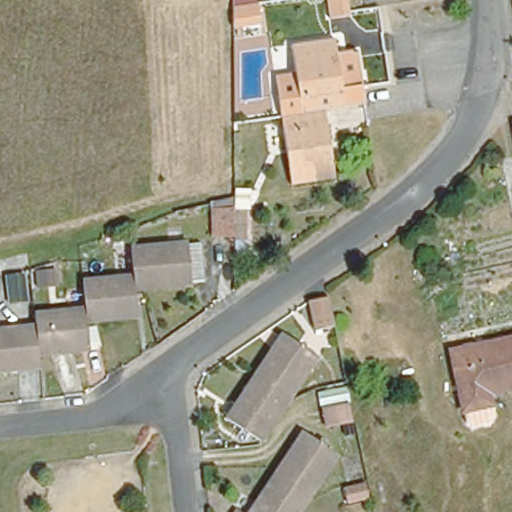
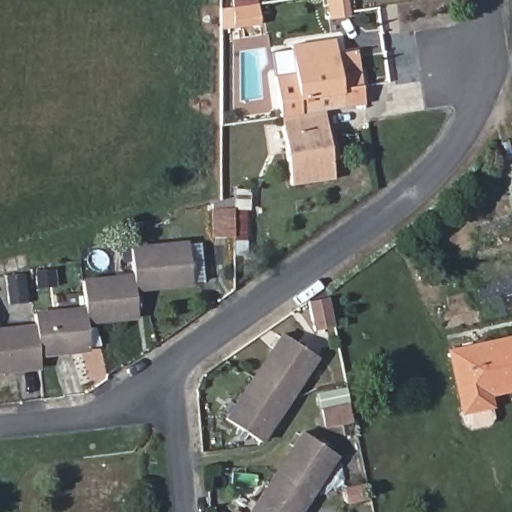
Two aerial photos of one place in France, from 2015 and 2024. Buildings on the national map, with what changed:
unchanged [(262,24),(232,28),(233,6),(233,0),(257,0),(257,4),(262,24)]
unchanged [(326,0),(348,0),(351,15),(329,20),(326,0)]
unchanged [(300,74),(297,44),(338,40),(340,53),(347,109),(328,111),(285,119),(278,75),(300,74)]
unchanged [(351,51),(358,54),(363,85),(366,103),(347,109),(340,53),(351,51)]
unchanged [(328,111),(336,179),(293,184),(285,119),(328,111)]
unchanged [(509,122),(512,121),(512,139),(509,122)]
unchanged [(247,235),(225,237),(225,210),(247,210),(247,235)]
unchanged [(190,244),(193,287),(137,294),(134,271),(131,252),(190,244)]
unchanged [(137,294),(137,297),(140,319),(86,325),(84,310),(81,289),(80,280),(134,271),(137,294)]
unchanged [(342,319),(323,323),(317,293),(336,289),(342,319)]
unchanged [(84,310),(86,325),(86,330),(89,352),(36,357),(35,351),(33,334),(32,315),(84,310)]
unchanged [(285,332),(317,354),(291,397),(257,375),(285,332)]
unchanged [(36,357),(37,379),(0,383),(0,338),(33,334),(35,351),(36,357)]
unchanged [(462,414),(448,349),(512,335),(512,393),(491,397),(491,412),(462,414)]
unchanged [(291,397),(261,443),(227,421),(257,375),(291,397)]
unchanged [(362,413),(332,419),(329,399),(357,394),(362,413)]
unchanged [(303,432),(338,453),(312,494),(277,473),(303,432)]
unchanged [(312,494),(300,512),(253,512),(277,473),(312,494)]
unchanged [(235,510),(238,512),(234,512),(235,510)]

